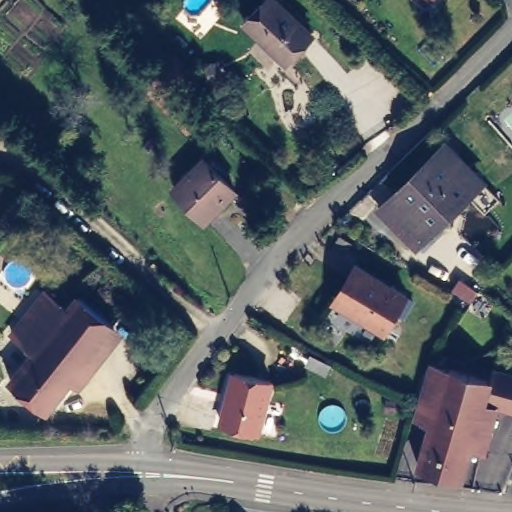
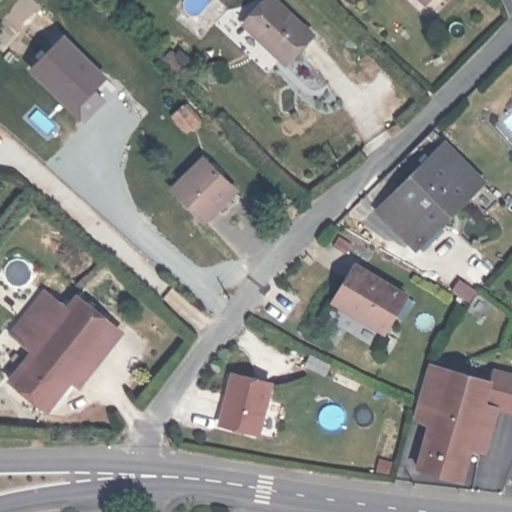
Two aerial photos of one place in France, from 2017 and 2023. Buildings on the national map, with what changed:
unchanged [(272,0),(313,39),(287,67),(244,27),(270,0),(272,0)]
unchanged [(418,0),(430,0),(424,6),(418,0)]
new [(29,70),(65,32),(109,76),(97,90),(106,99),(83,122),(29,70)]
unchanged [(444,150),(478,187),(417,241),(383,202),(444,150)]
unchanged [(229,192),(200,220),(177,197),(172,192),(200,163),(222,185),(229,192)]
unchanged [(343,300),(360,268),(411,295),(390,332),(370,322),(340,306),(343,300)]
unchanged [(35,353),(14,335),(45,294),(67,312),(77,298),(114,325),(48,413),(11,385),(35,353)]
unchanged [(489,382),(490,375),(512,380),(512,415),(482,409),(458,486),(416,476),(427,433),(411,428),(425,376),(425,370),(426,368),(489,382)]
unchanged [(264,436),(227,430),(237,387),(239,378),(273,385),(272,390),(264,436)]

